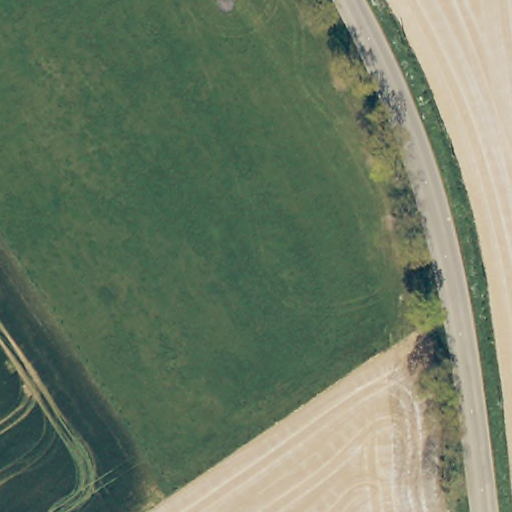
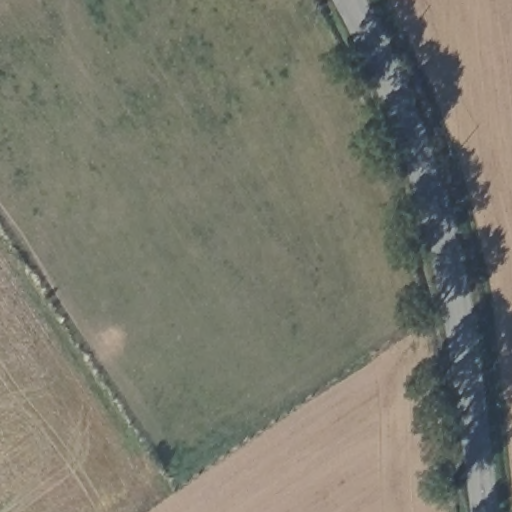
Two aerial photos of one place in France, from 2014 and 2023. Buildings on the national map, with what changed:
[]

